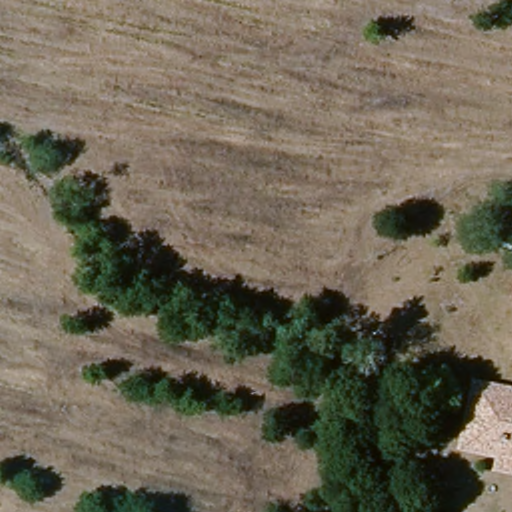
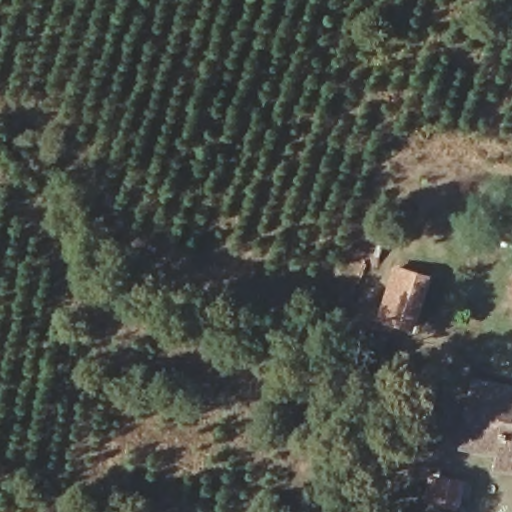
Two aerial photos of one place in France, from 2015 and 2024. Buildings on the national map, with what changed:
new [(378,320),(394,266),(429,278),(414,334),(378,320)]
unchanged [(436,347),(434,362),(424,361),(427,345),(436,347)]
unchanged [(512,386),(512,468),(495,464),(498,452),(461,446),(474,378),(512,386)]

